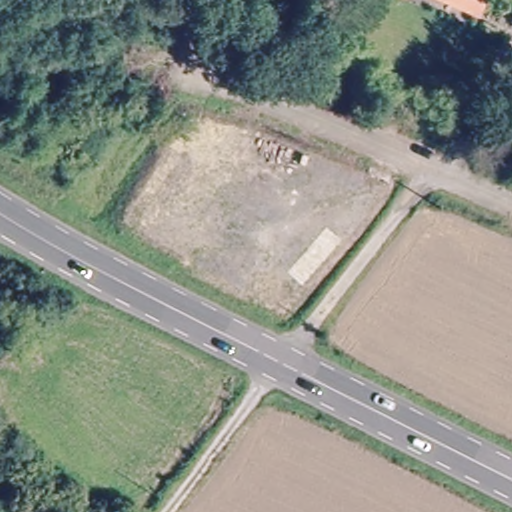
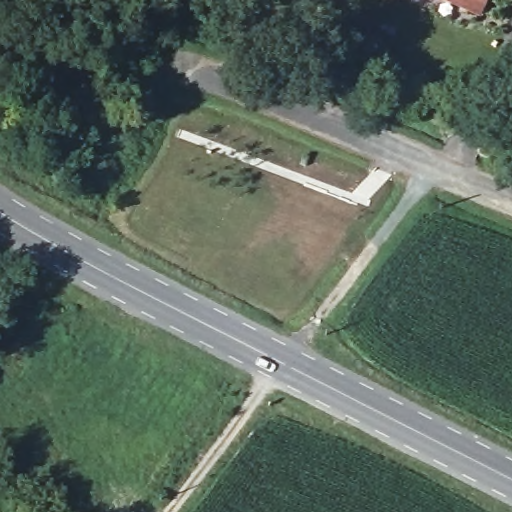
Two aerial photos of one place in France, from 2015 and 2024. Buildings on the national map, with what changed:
unchanged [(489,0),(481,19),(429,0),(489,0)]

